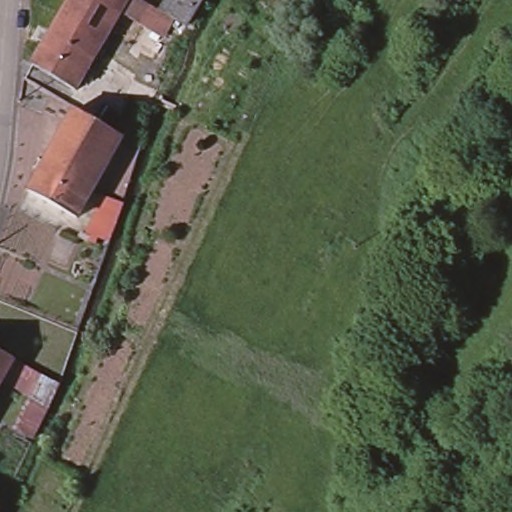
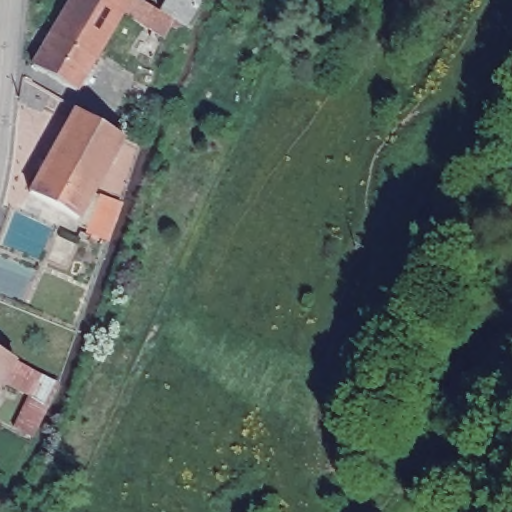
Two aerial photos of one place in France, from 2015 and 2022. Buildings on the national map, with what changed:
unchanged [(140,24),(119,12),(102,41),(59,17),(68,0),(142,0),(151,5),(140,24)]
unchanged [(183,24),(158,9),(163,0),(197,0),(183,24)]
unchanged [(102,41),(74,90),(32,65),(59,17),(102,41)]
unchanged [(121,142),(95,190),(46,164),(73,114),(121,142)]
unchanged [(95,190),(76,223),(28,196),(46,164),(95,190)]
unchanged [(2,385),(0,387),(0,356),(15,363),(2,385)]
unchanged [(15,363),(60,382),(32,438),(14,423),(27,396),(2,385),(15,363)]
unchanged [(0,505),(0,504),(1,504),(0,505)]

